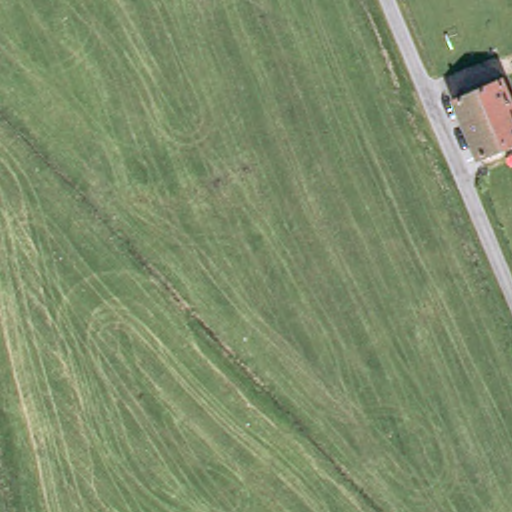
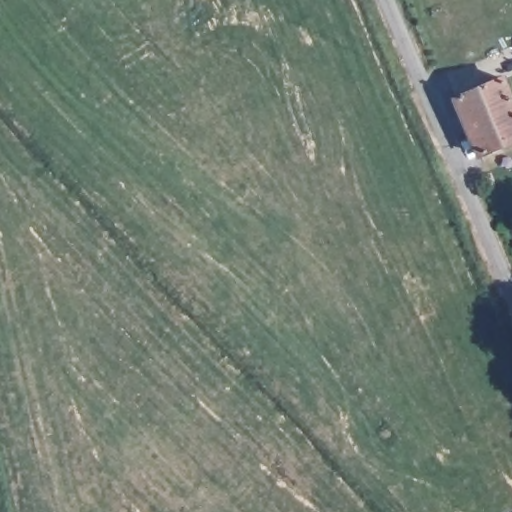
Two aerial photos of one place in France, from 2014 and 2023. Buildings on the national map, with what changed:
unchanged [(512,134),(474,152),(448,95),(496,73),(512,107),(512,134)]

